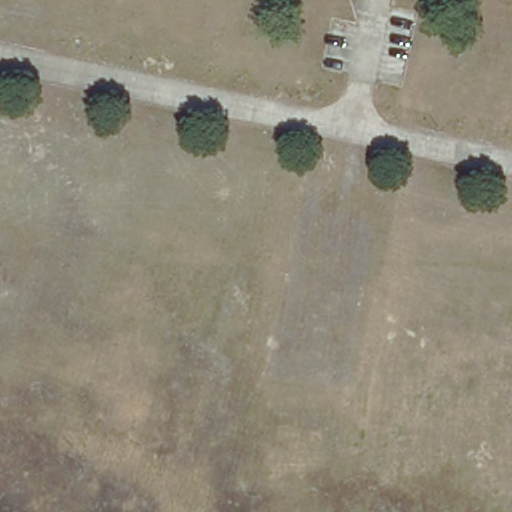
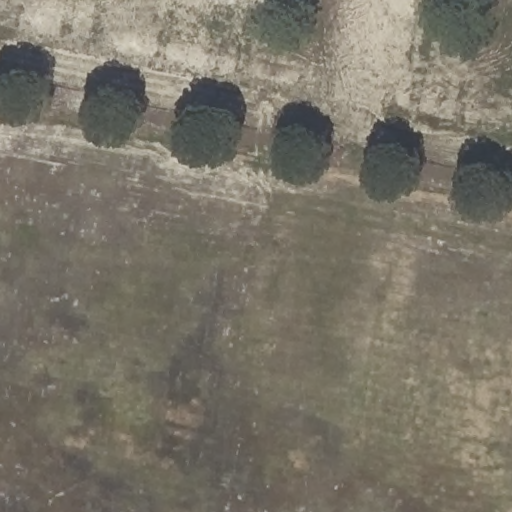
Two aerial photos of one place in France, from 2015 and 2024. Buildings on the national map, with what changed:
[]

